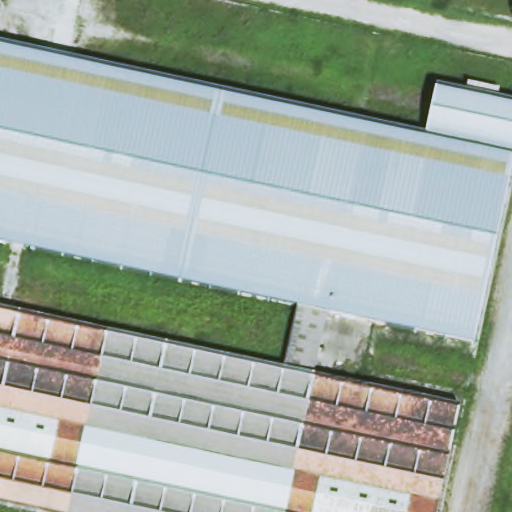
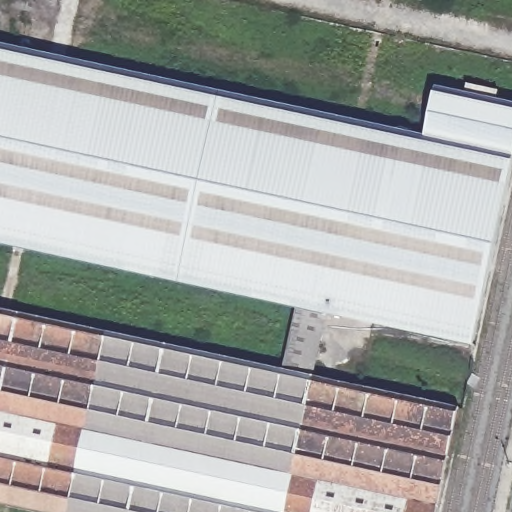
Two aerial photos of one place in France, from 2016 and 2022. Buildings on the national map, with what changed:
unchanged [(425,139),(435,94),(512,110),(512,171),(474,345),(330,313),(316,376),(459,407),(437,512),(34,512),(0,505),(0,309),(286,371),(299,310),(0,245),(0,47),(425,139)]

